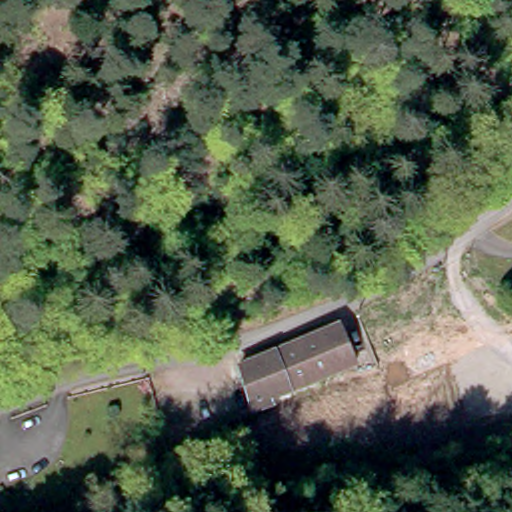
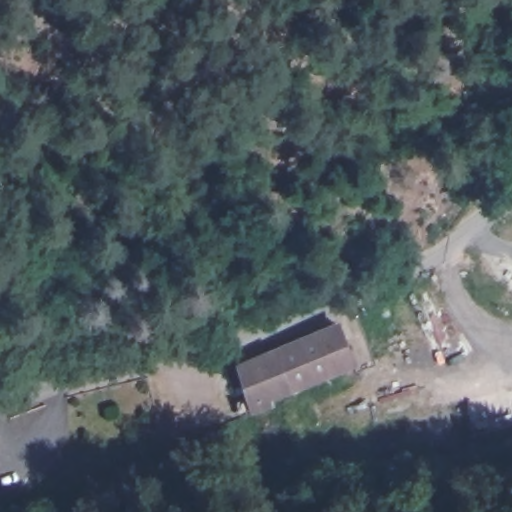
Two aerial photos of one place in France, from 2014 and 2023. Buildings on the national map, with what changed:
unchanged [(256,409),(252,401),(240,363),(340,322),(356,361),(272,395),(274,402),(256,409)]

